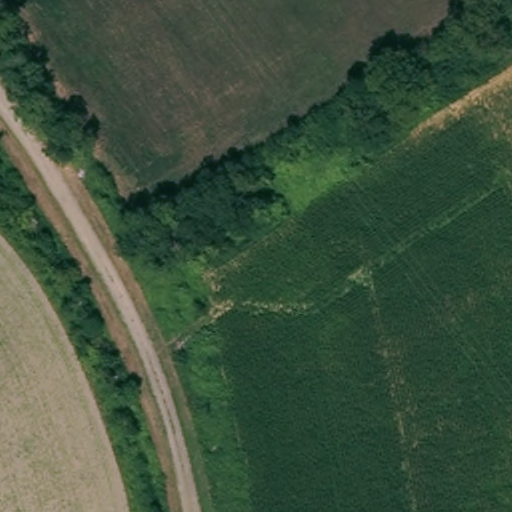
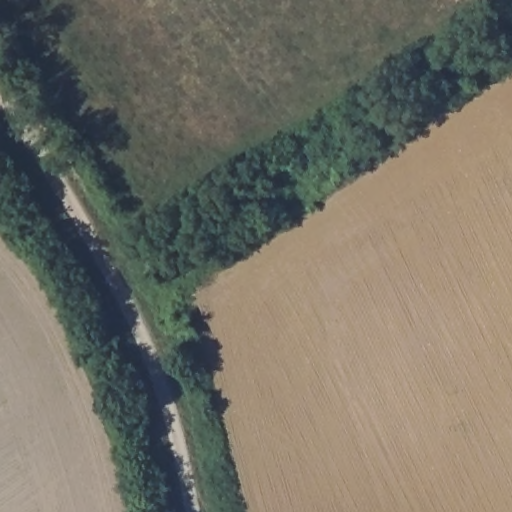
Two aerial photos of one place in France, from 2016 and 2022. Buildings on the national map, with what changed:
[]

